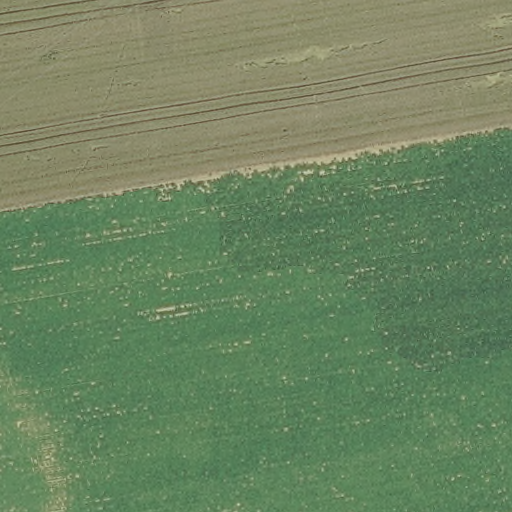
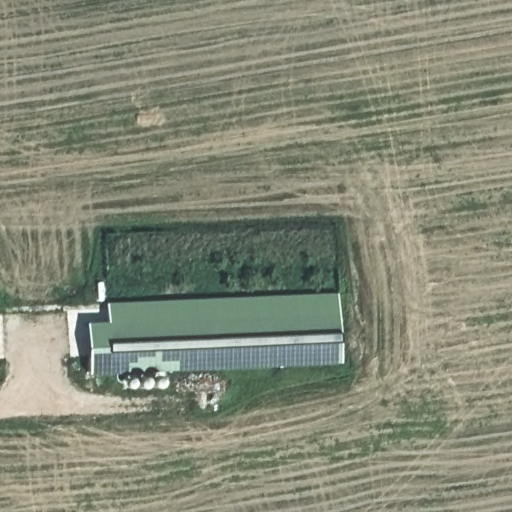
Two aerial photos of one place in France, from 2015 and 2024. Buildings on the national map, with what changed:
new [(110,323),(108,304),(337,294),(343,363),(91,378),(92,325),(110,323)]

